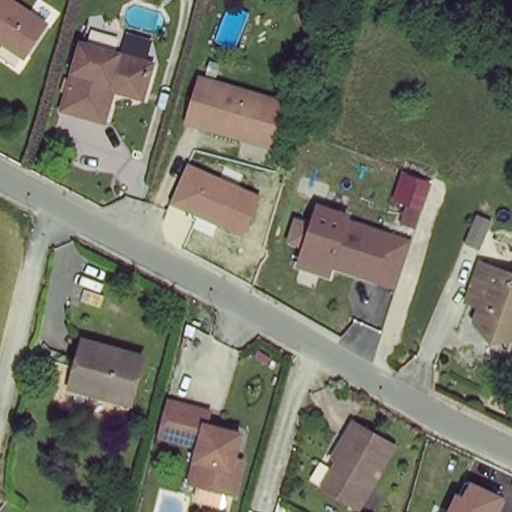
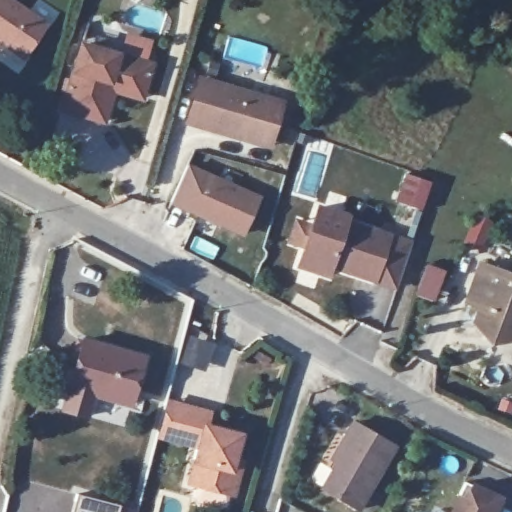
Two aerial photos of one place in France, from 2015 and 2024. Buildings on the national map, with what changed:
unchanged [(0,37),(0,0),(8,0),(44,24),(24,52),(0,37)]
unchanged [(82,43),(154,62),(143,97),(115,89),(105,120),(63,107),(82,43)]
unchanged [(236,143),(182,126),(197,81),(283,107),(274,136),(268,154),(236,143)]
unchanged [(243,235),(172,203),(188,164),(261,196),(243,235)]
unchanged [(394,287),(334,267),(332,271),(297,260),(318,199),(347,207),(345,215),(412,236),(394,287)]
unchanged [(505,273),(512,271),(512,341),(495,343),(472,325),(479,307),(467,301),(472,292),(482,265),(505,273)]
unchanged [(82,341),(141,356),(133,397),(89,388),(88,394),(70,390),(82,341)]
unchanged [(206,428),(238,436),(231,470),(239,472),(233,495),(197,486),(202,463),(194,462),(198,442),(173,436),(161,434),(165,416),(168,404),(180,407),(207,414),(206,428)]
unchanged [(352,512),(322,493),(350,443),(346,441),(354,426),(397,447),(361,512),(352,512)]
unchanged [(500,499),(505,500),(500,512),(448,512),(456,492),(464,496),(472,481),(502,495),(500,499)]
new [(139,506),(137,512),(70,512),(75,491),(139,506)]

